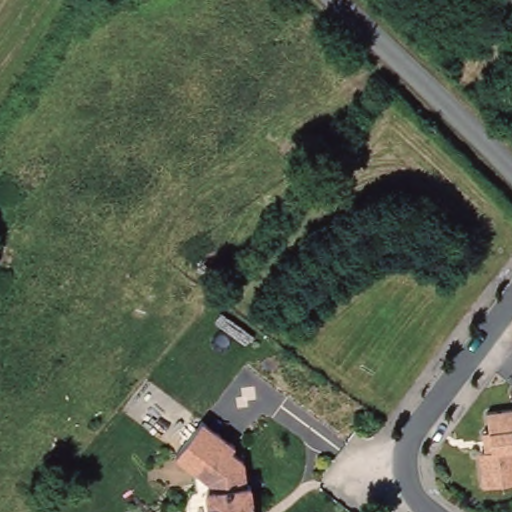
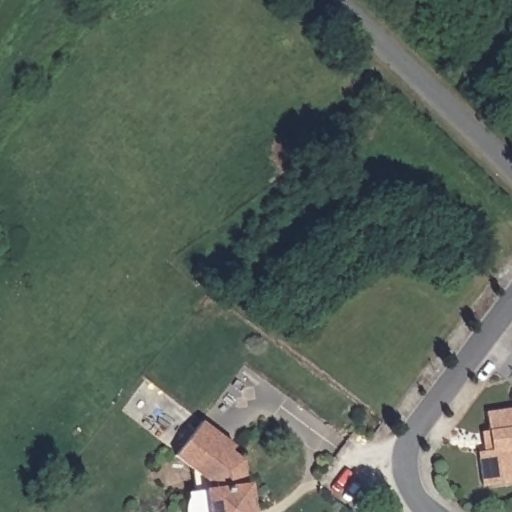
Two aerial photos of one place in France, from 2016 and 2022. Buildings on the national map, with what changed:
unchanged [(478,461),(485,452),(492,452),(487,415),(512,413),(512,483),(482,487),(478,461)]
unchanged [(206,495),(204,480),(176,459),(202,424),(235,449),(232,454),(244,464),(247,487),(252,486),(255,512),(202,512),(199,497),(206,495)]

